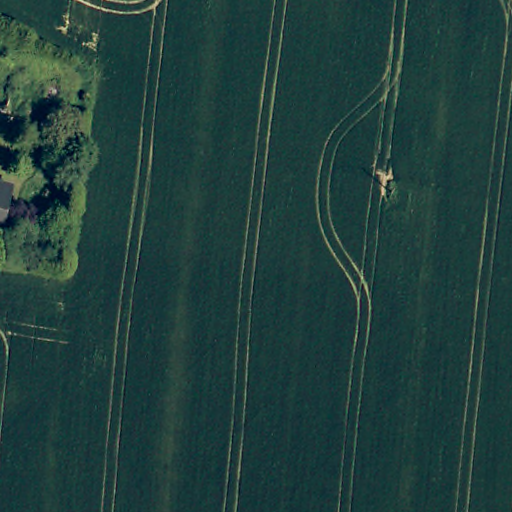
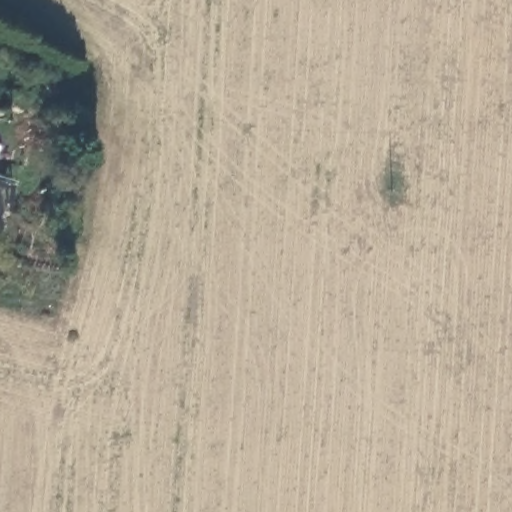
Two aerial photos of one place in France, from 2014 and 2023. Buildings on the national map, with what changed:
unchanged [(26,63),(19,87),(28,92),(23,114),(9,111),(0,109),(0,56),(26,63)]
unchanged [(14,190),(1,242),(0,242),(0,186),(14,190)]

